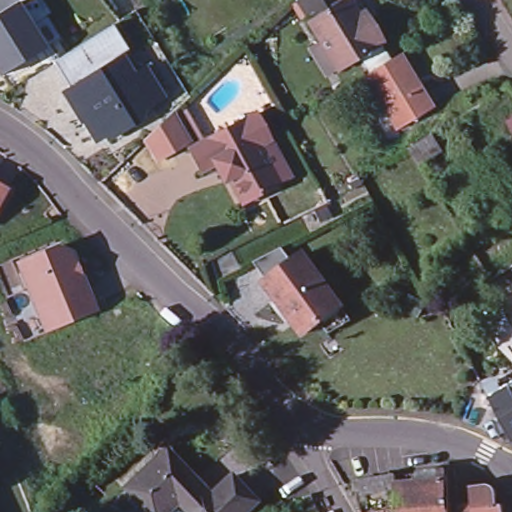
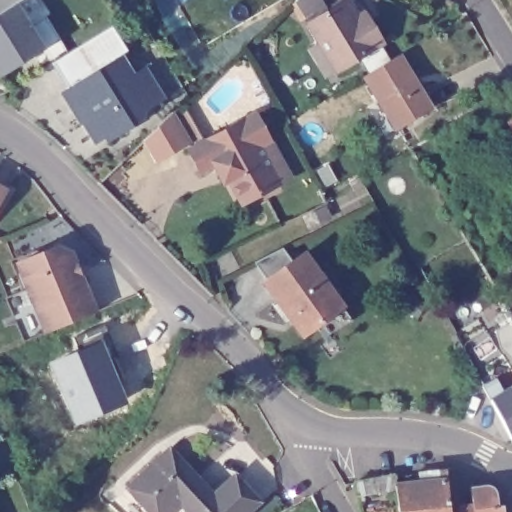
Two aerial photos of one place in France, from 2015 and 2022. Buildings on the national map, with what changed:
unchanged [(297,24),(335,0),(336,0),(347,17),(352,14),(359,24),(372,44),(341,62),(327,70),(310,44),(297,24)]
unchanged [(43,47),(0,74),(0,14),(15,5),(43,47)]
unchanged [(109,26),(127,52),(122,54),(136,75),(150,66),(165,98),(147,107),(145,120),(107,141),(103,136),(94,141),(60,94),(68,86),(52,62),(109,26)]
unchanged [(390,125),(357,71),(387,52),(392,49),(412,82),(425,103),(422,105),(390,125)]
unchanged [(216,158),(204,165),(193,144),(259,109),(270,129),(217,160),(216,158)]
unchanged [(173,113),(175,115),(184,110),(200,131),(187,136),(191,142),(157,162),(142,141),(173,113)]
unchanged [(510,115),(512,113),(512,117),(510,115)]
unchanged [(507,120),(512,117),(512,129),(507,120)]
unchanged [(246,196),(245,193),(233,174),(210,187),(203,175),(220,166),(217,160),(270,129),(273,134),(264,139),(282,172),(284,175),(246,196)]
unchanged [(427,130),(436,145),(413,159),(405,144),(427,130)]
unchanged [(0,201),(0,177),(10,183),(0,201)]
unchanged [(43,331),(15,262),(55,246),(67,252),(92,310),(92,311),(43,331)]
unchanged [(318,320),(300,333),(294,325),(270,293),(262,282),(298,255),(312,273),(335,303),(321,313),(316,316),(318,320)]
unchanged [(495,330),(512,320),(512,355),(507,347),(495,330)]
new [(102,340),(128,405),(73,427),(49,365),(102,340)]
unchanged [(507,432),(503,426),(490,398),(500,392),(512,385),(512,441),(507,432)]
unchanged [(163,451),(178,466),(183,461),(189,466),(150,506),(129,485),(163,451)]
unchanged [(180,497),(166,512),(156,512),(150,506),(189,466),(212,491),(233,512),(195,512),(180,497)]
unchanged [(235,470),(259,495),(242,512),(233,512),(212,491),(235,470)]
unchanged [(420,485),(418,477),(445,473),(447,482),(450,512),(397,512),(395,488),(420,485)]
unchanged [(457,509),(472,507),(470,497),(470,490),(485,488),(487,488),(488,489),(490,490),(492,491),(494,493),(495,495),(495,497),(496,498),(496,500),(497,510),(502,509),(502,512),(457,512),(457,509)]

